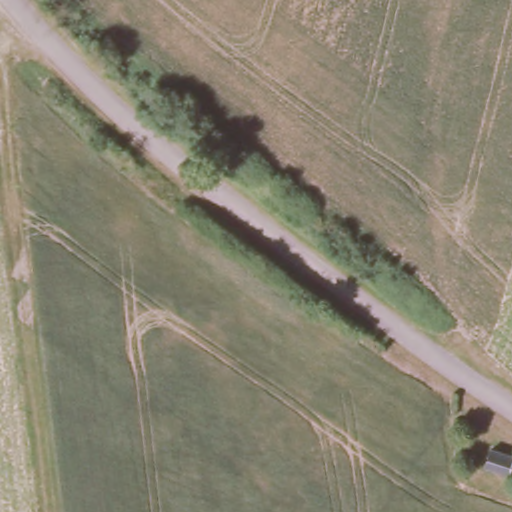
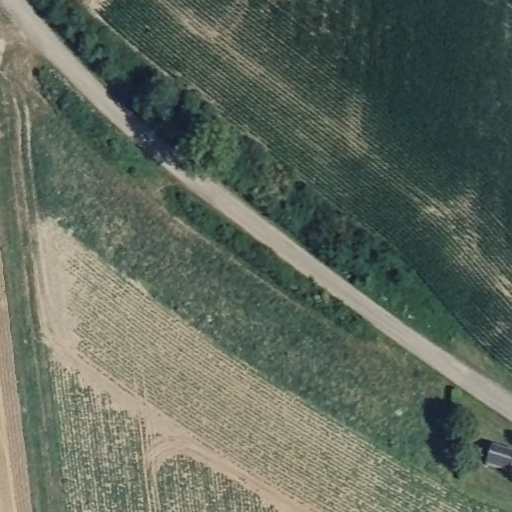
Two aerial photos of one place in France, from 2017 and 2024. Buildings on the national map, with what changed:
unchanged [(512,453),(512,468),(511,472),(488,465),(493,448),(512,453)]

